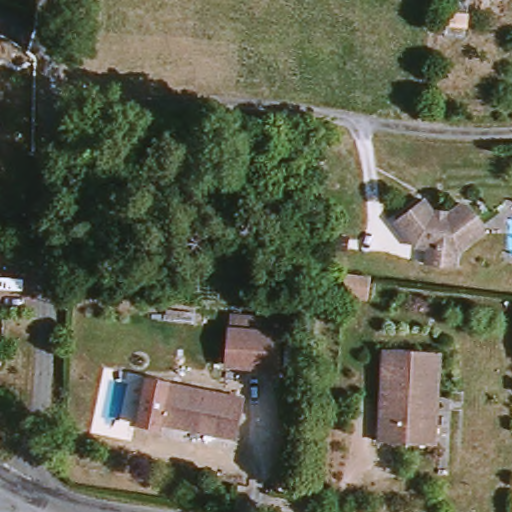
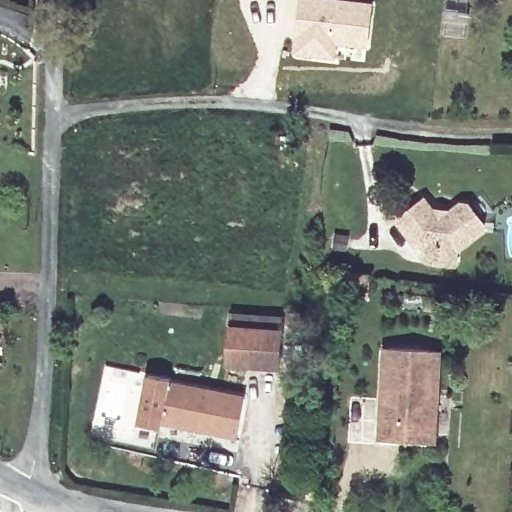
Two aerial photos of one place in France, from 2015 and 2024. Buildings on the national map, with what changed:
new [(298,0),(359,0),(373,2),(366,52),(341,48),(339,63),(290,57),(298,0)]
unchanged [(435,260),(437,245),(424,243),(406,217),(436,197),(446,213),(456,214),(472,203),(480,203),(494,222),(491,230),(466,248),(464,263),(435,260)]
unchanged [(298,312),(296,332),(244,328),(246,308),(298,312)]
unchanged [(296,332),(294,369),(241,365),(244,328),(296,332)]
unchanged [(317,361),(302,361),(303,343),(318,344),(317,361)]
unchanged [(389,438),(391,398),(393,347),(405,347),(443,350),(453,351),(448,402),(444,442),(389,438)]
unchanged [(176,381),(175,384),(177,384),(250,399),(242,440),(169,425),(167,424),(166,430),(144,425),(154,376),(176,381)]

